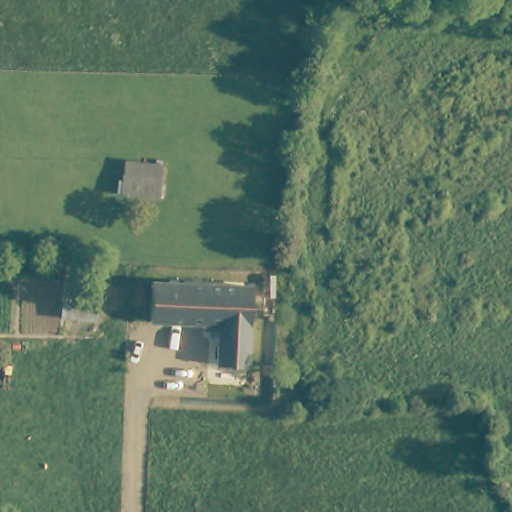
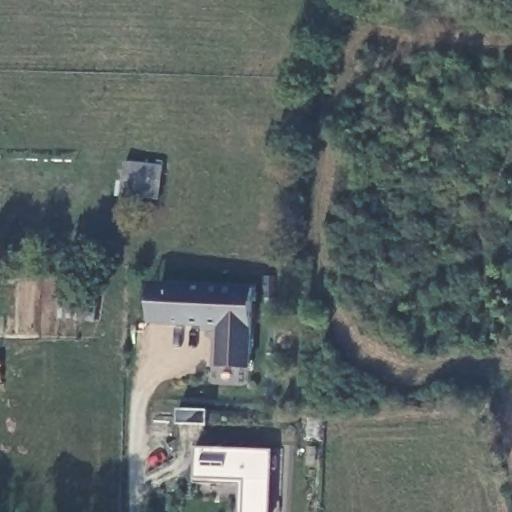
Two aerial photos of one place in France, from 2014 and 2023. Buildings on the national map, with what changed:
unchanged [(162,167),(160,200),(120,195),(122,161),(162,167)]
unchanged [(216,367),(218,332),(203,331),(203,327),(150,323),(151,281),(254,286),(251,369),(216,367)]
new [(60,283),(97,287),(95,316),(59,312),(60,283)]
new [(241,485),(195,482),(196,445),(272,450),(269,512),(241,512),(241,485)]

